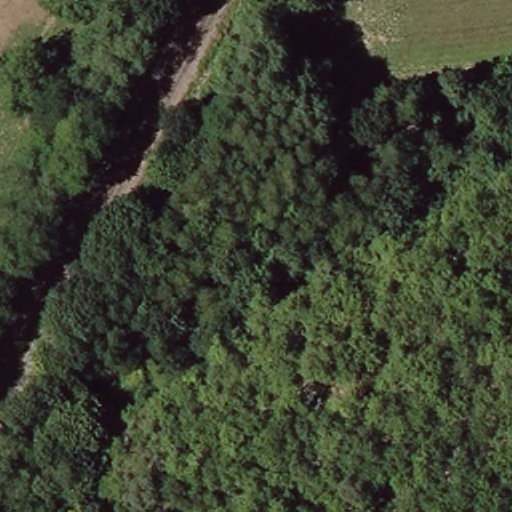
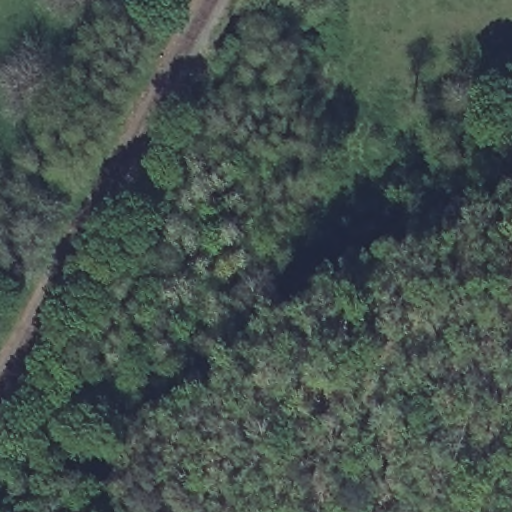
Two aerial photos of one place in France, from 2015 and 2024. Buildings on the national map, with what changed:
[]

